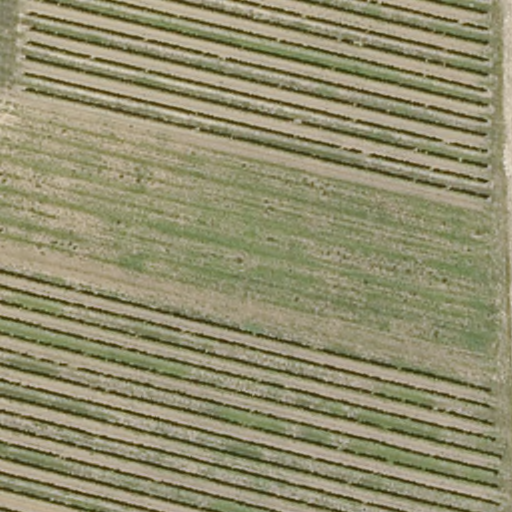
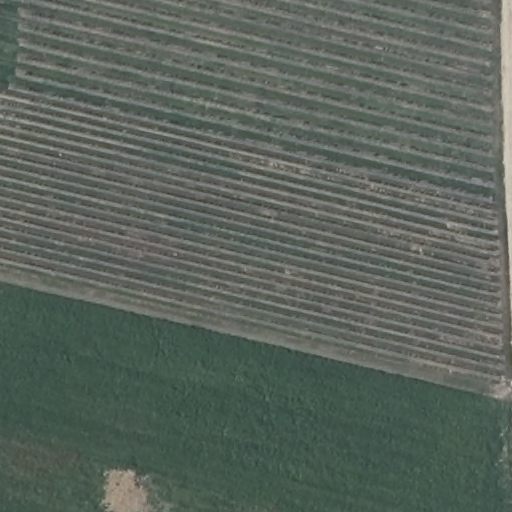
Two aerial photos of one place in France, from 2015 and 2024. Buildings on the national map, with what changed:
[]

